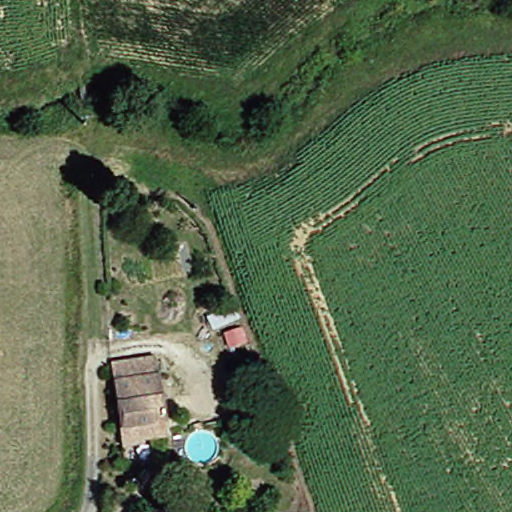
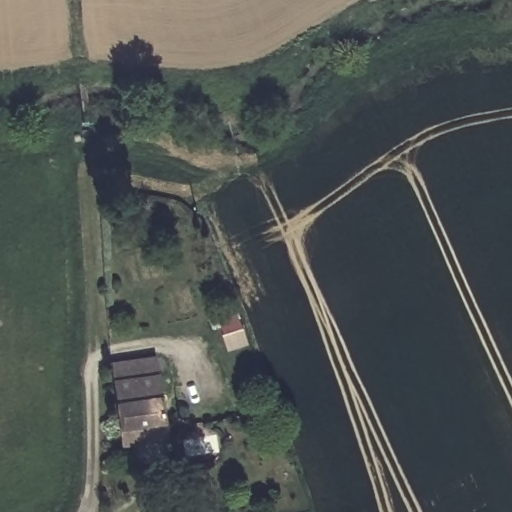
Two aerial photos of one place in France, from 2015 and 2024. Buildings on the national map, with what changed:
unchanged [(132,431),(112,431),(104,368),(152,364),(156,414),(157,430),(132,431)]

